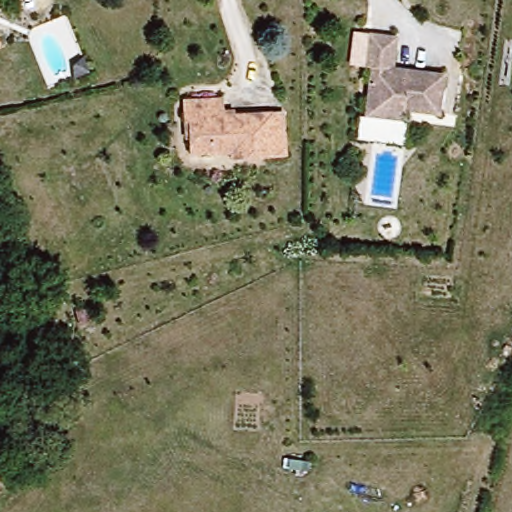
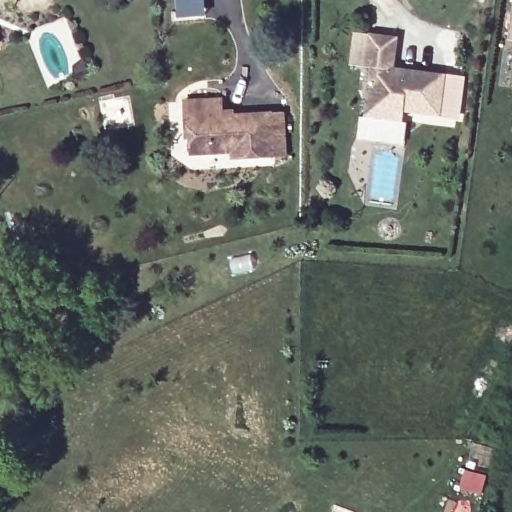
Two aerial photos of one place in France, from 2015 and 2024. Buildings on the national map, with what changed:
new [(202,19),(177,21),(175,0),(201,0),(202,19)]
new [(512,0),(512,47),(505,46),(512,0)]
unchanged [(370,69),(364,69),(368,36),(395,40),(391,71),(442,77),(436,117),(400,113),(399,122),(362,118),(370,69)]
unchanged [(236,162),(235,155),(192,157),(189,122),(181,125),(183,101),(222,99),(221,113),(283,115),(289,158),(236,162)]
unchanged [(401,148),(352,142),(356,117),(362,118),(399,122),(404,123),(401,148)]

